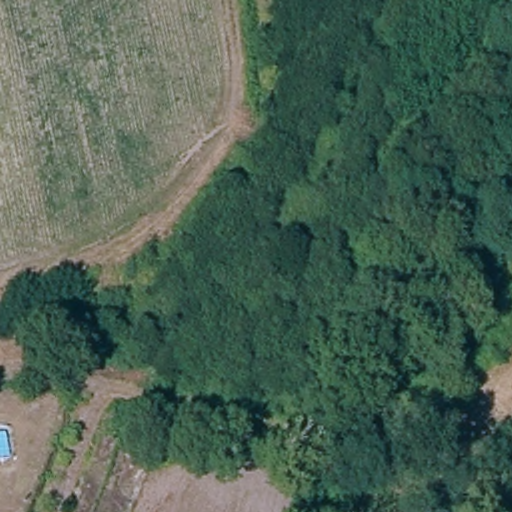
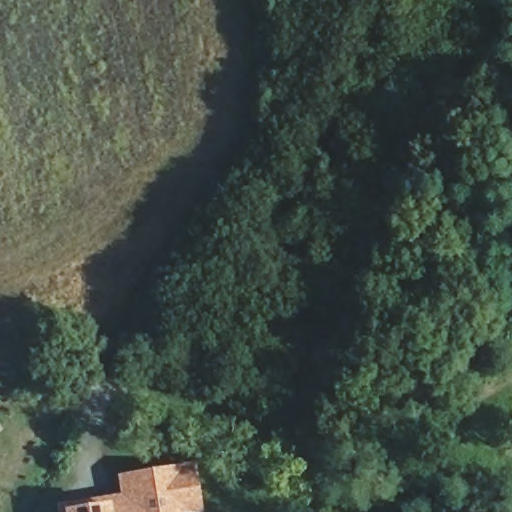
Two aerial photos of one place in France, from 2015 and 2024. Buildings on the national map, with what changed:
new [(78,501),(119,492),(116,473),(195,462),(204,512),(60,512),(60,507),(79,503),(78,501)]

